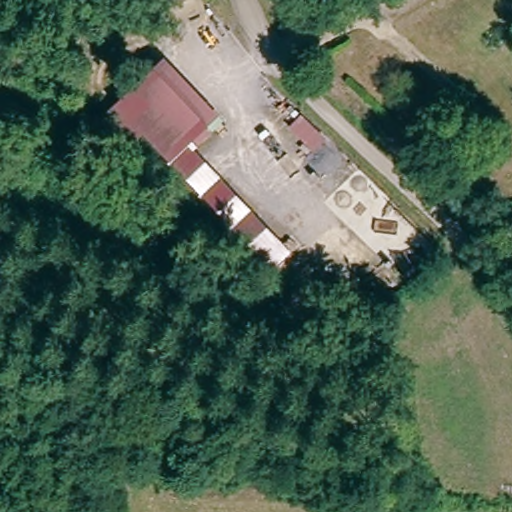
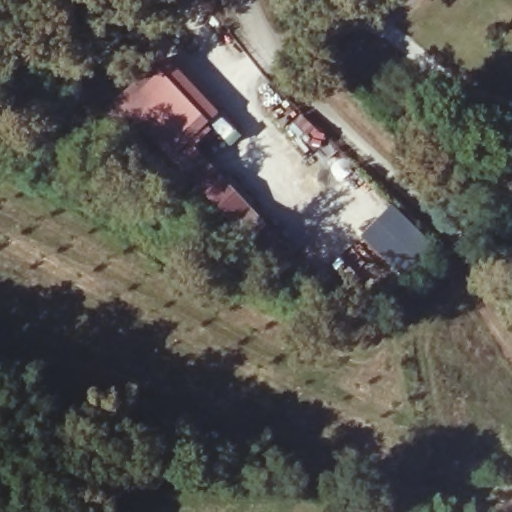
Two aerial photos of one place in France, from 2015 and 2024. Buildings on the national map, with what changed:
unchanged [(153,58),(210,119),(189,139),(173,154),(114,93),(153,58)]
unchanged [(283,237),(267,252),(173,154),(189,139),(283,237)]
new [(383,229),(376,221),(392,205),(433,244),(427,250),(431,254),(408,278),(369,244),(383,229)]

